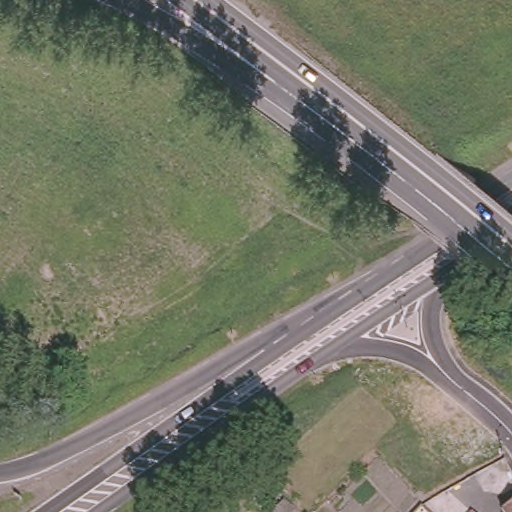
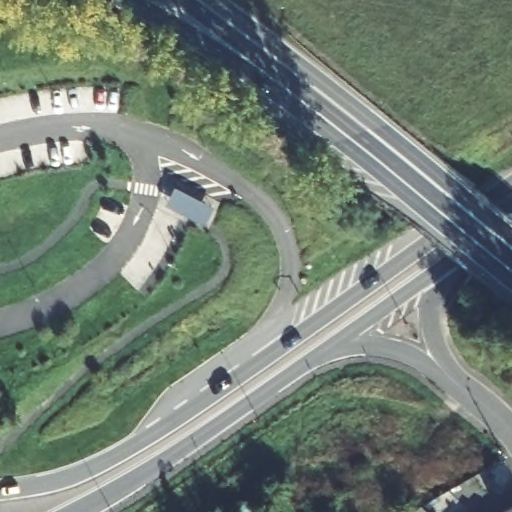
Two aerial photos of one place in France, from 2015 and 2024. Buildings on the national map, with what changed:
new [(168,203),(177,185),(216,205),(207,222),(168,203)]
unchanged [(502,511),(512,507),(512,512),(502,512),(502,511)]

